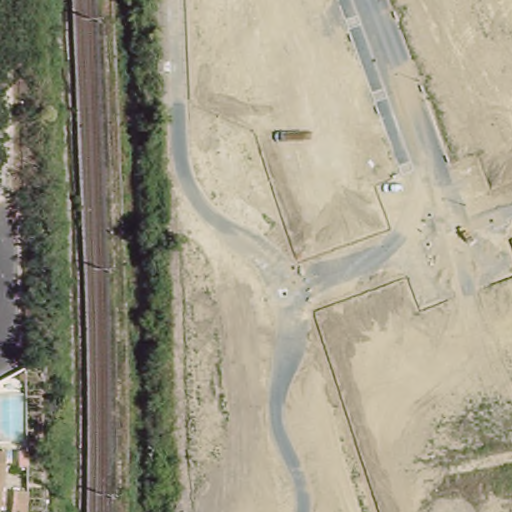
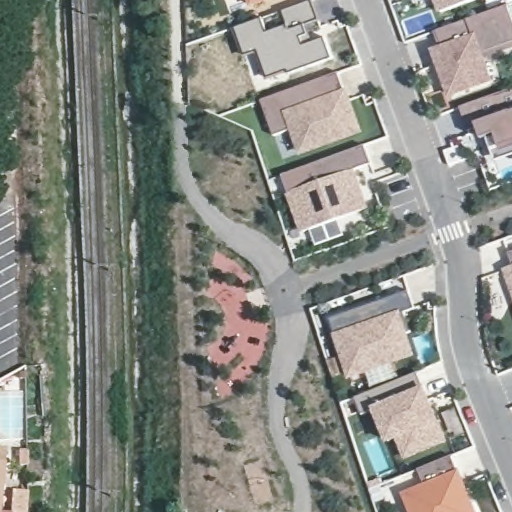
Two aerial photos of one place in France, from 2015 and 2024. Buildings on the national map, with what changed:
new [(325,37),(333,59),(295,72),(293,68),(274,75),(264,47),(251,51),(242,26),(312,0),(319,20),(305,26),(308,35),(311,42),(325,37)]
new [(253,0),(265,0),(255,4),(253,0)]
new [(477,0),(441,13),(437,3),(418,10),(415,0),(477,0)]
new [(443,49),(437,31),(507,5),(512,18),(512,43),(480,54),(490,81),(450,95),(435,52),(443,49)]
new [(275,137),(262,101),(338,73),(360,132),(302,153),(283,160),(275,137)]
new [(497,161),(487,138),(482,139),(478,128),(469,131),(460,106),(512,89),(512,156),(497,161)]
new [(365,146),(372,164),(352,171),(367,210),(303,233),(283,176),(365,146)]
new [(444,152),(453,149),(458,163),(449,166),(444,152)]
new [(512,269),(512,287),(507,271),(512,269)]
new [(411,309),(407,311),(415,329),(405,334),(413,354),(348,381),(334,345),(337,344),(327,320),(403,289),(411,309)]
new [(386,442),(373,411),(360,416),(353,399),(420,372),(448,441),(420,452),(400,460),(392,440),(412,431),(386,442)]
new [(396,479),(452,455),(465,485),(460,487),(462,491),(466,489),(475,512),(409,512),(396,479)]
unchanged [(0,462),(11,463),(6,512),(0,512),(0,462)]

